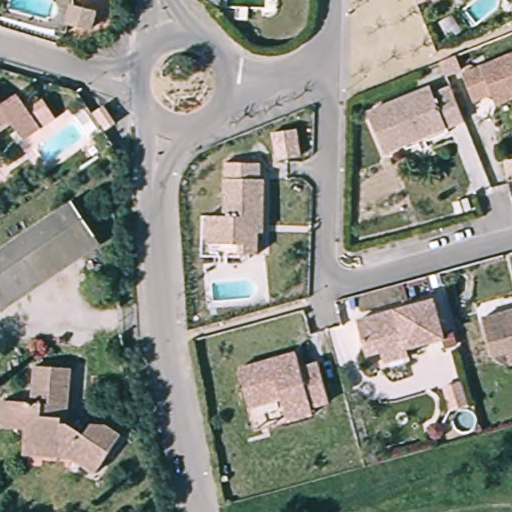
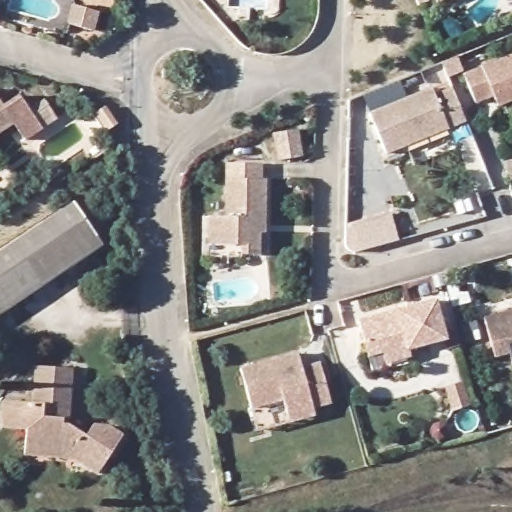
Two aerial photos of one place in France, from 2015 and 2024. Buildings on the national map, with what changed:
unchanged [(65,14),(70,0),(91,0),(85,19),(76,16),(65,14)]
unchanged [(447,0),(452,0),(448,1),(447,0)]
unchanged [(499,99),(497,95),(480,102),(468,74),(512,55),(512,104),(503,108),(499,99)]
unchanged [(385,154),(368,113),(431,86),(434,94),(451,87),(465,120),(448,128),(407,144),(385,154)]
unchanged [(16,99),(27,117),(37,133),(20,144),(10,128),(0,134),(0,109),(16,99)]
unchanged [(89,106),(102,99),(112,115),(100,124),(89,106)]
unchanged [(298,130),(301,157),(276,160),(271,133),(298,130)]
unchanged [(263,182),(271,181),(269,227),(263,225),(261,254),(243,254),(243,244),(209,244),(212,217),(226,218),(228,164),(264,166),(263,182)]
unchanged [(75,202),(97,235),(0,300),(0,252),(75,202)]
new [(391,213),(399,240),(349,254),(342,226),(391,213)]
unchanged [(97,235),(103,246),(0,315),(0,300),(97,235)]
unchanged [(393,361),(389,349),(376,353),(367,318),(441,298),(451,337),(417,346),(420,354),(393,361)]
unchanged [(498,359),(487,320),(512,313),(512,357),(511,356),(498,359)]
unchanged [(291,415),(288,406),(284,392),(253,401),(243,362),(277,353),(297,348),(300,354),(302,359),(319,354),(331,394),(312,399),(314,408),(291,415)]
unchanged [(5,425),(10,397),(38,399),(42,359),(79,363),(75,404),(72,420),(88,431),(92,427),(112,426),(123,436),(95,472),(71,456),(27,454),(27,447),(29,428),(5,425)]

